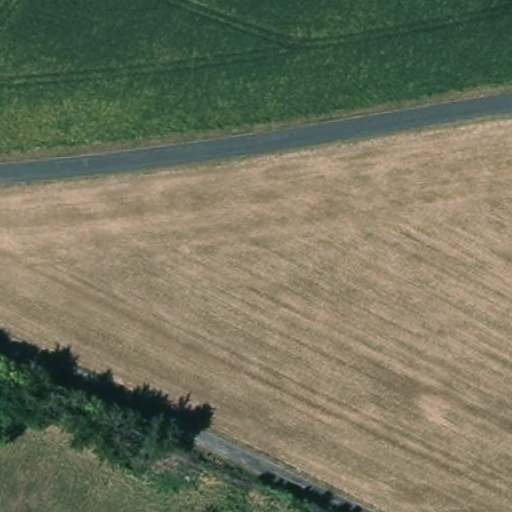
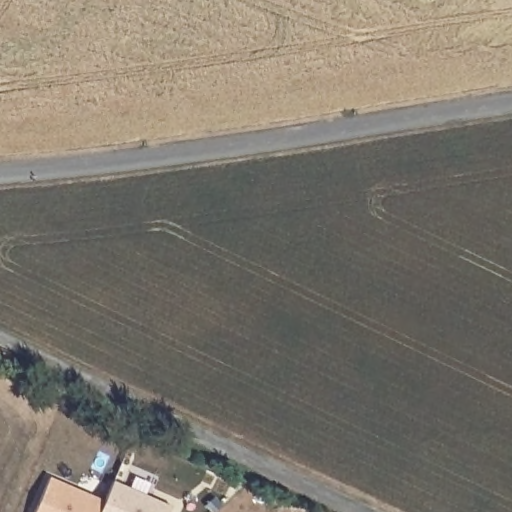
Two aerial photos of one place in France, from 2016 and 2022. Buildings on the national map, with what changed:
new [(103,505),(100,512),(35,512),(48,482),(103,505)]
new [(111,485),(171,511),(171,512),(100,512),(103,505),(111,485)]

